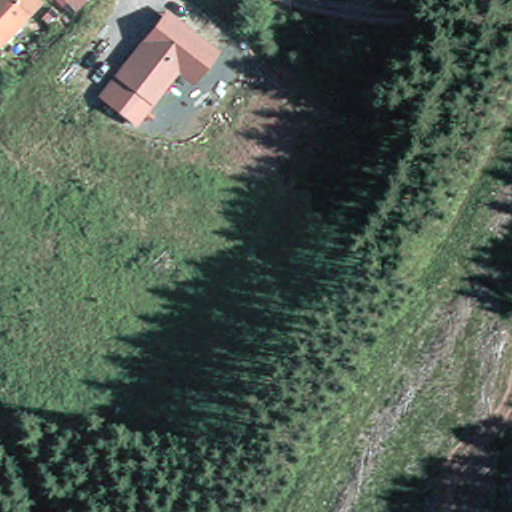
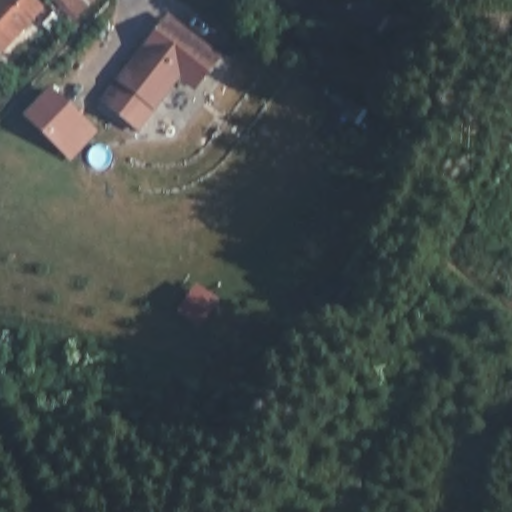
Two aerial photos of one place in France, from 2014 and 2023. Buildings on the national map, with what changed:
unchanged [(44,1),(4,49),(0,46),(0,0),(42,0),(44,1)]
unchanged [(74,19),(56,0),(94,0),(74,19)]
unchanged [(220,50),(193,85),(177,73),(137,124),(98,96),(166,7),(220,50)]
new [(99,130),(71,159),(23,114),(50,85),(99,130)]

